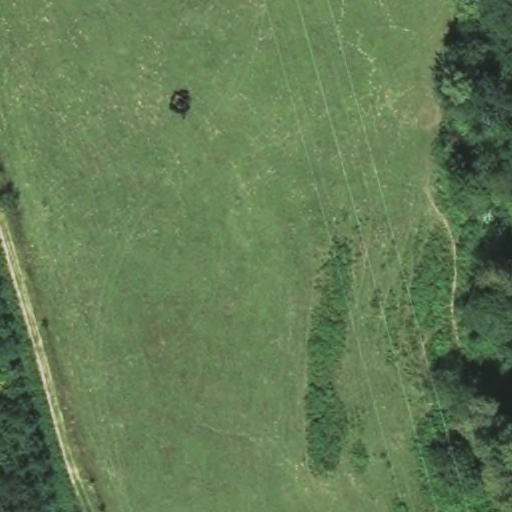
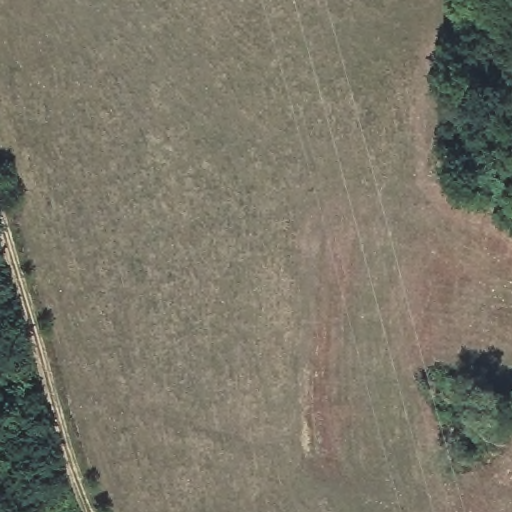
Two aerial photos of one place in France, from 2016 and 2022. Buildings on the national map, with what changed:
unchanged [(464,171),(464,194),(445,193),(447,169),(464,171)]

